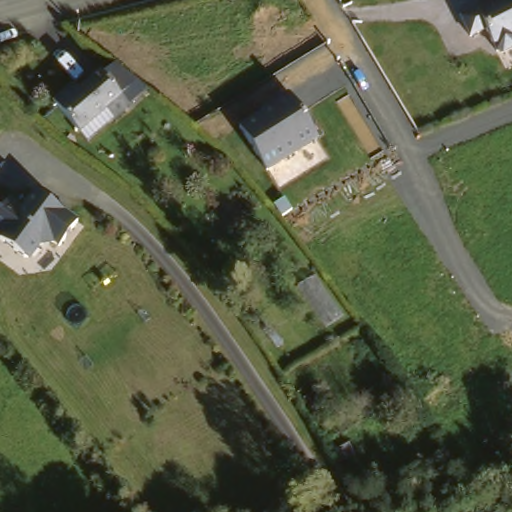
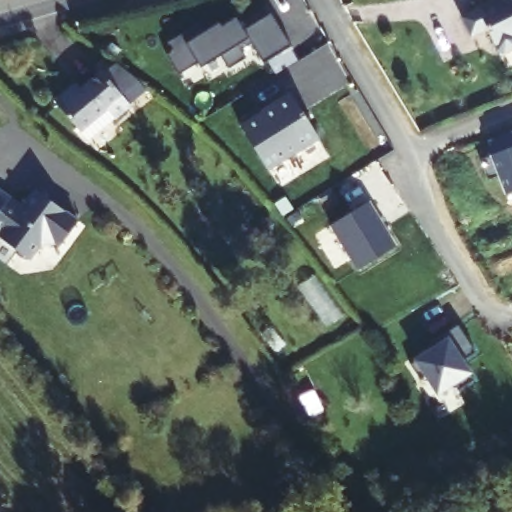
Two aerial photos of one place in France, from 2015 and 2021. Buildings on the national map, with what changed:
unchanged [(490,4),(488,0),(512,0),(512,32),(507,35),(512,46),(495,55),(479,32),(463,37),(455,19),(490,4)]
new [(184,49),(179,41),(208,21),(214,30),(228,20),(230,24),(244,14),(252,26),(277,10),(299,43),(272,61),(259,41),(249,48),(255,56),(235,69),(227,57),(210,69),(206,63),(187,75),(174,55),(184,49)]
unchanged [(77,71),(81,76),(96,64),(100,69),(51,91),(51,90),(77,71)]
unchanged [(76,125),(51,91),(81,76),(100,69),(128,107),(106,121),(83,136),(76,125)]
unchanged [(263,172),(234,129),(265,110),(264,108),(284,95),(313,139),(263,172)]
unchanged [(31,189),(66,212),(48,239),(42,235),(33,236),(25,249),(19,250),(0,237),(0,234),(1,233),(0,232),(0,204),(4,197),(19,207),(31,189)]
new [(370,202),(398,246),(358,271),(331,225),(370,202)]
new [(474,352),(463,358),(474,373),(439,396),(414,358),(434,345),(429,342),(458,325),(474,352)]

